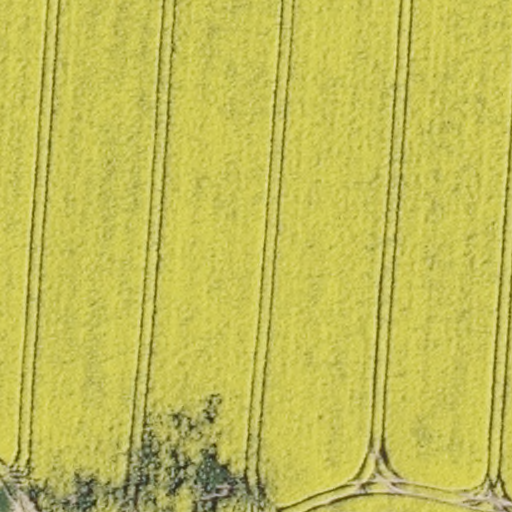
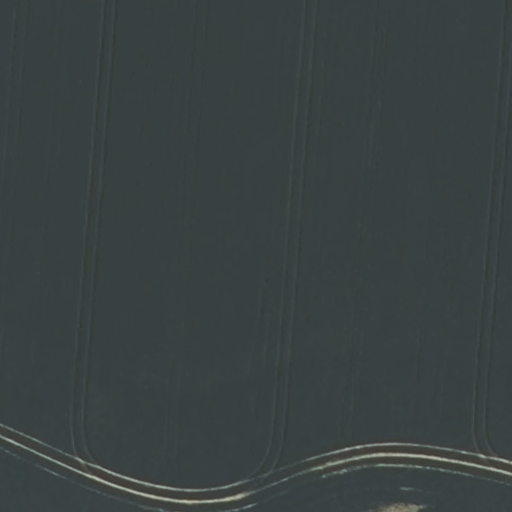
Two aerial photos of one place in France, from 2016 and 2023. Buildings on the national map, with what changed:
[]

